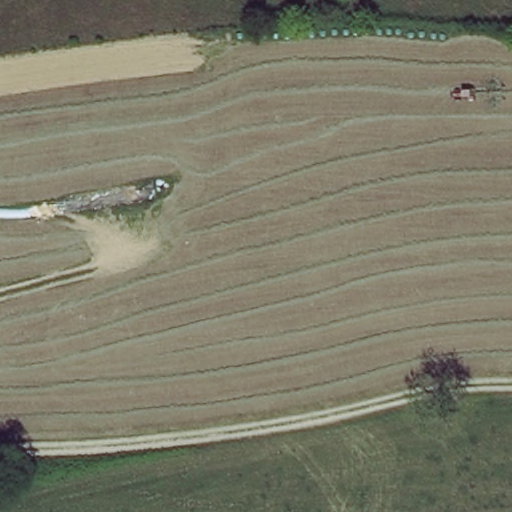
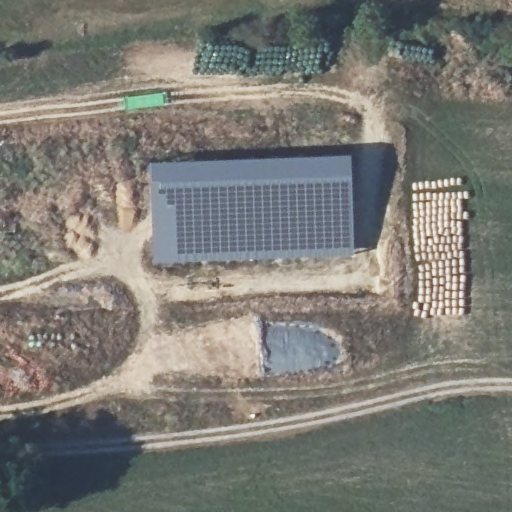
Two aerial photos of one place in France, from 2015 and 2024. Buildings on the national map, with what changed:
new [(351,153),(355,255),(315,255),(153,263),(149,160),(351,153)]

